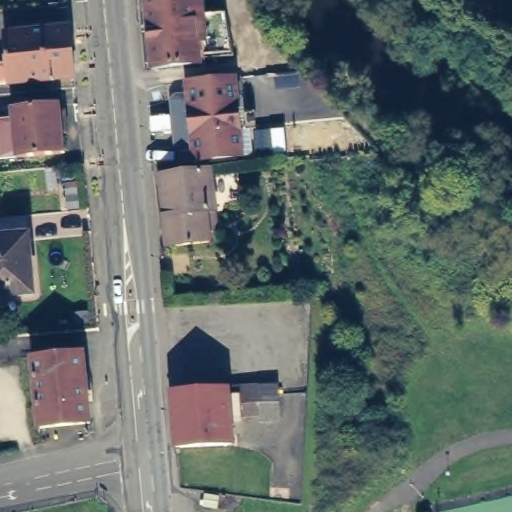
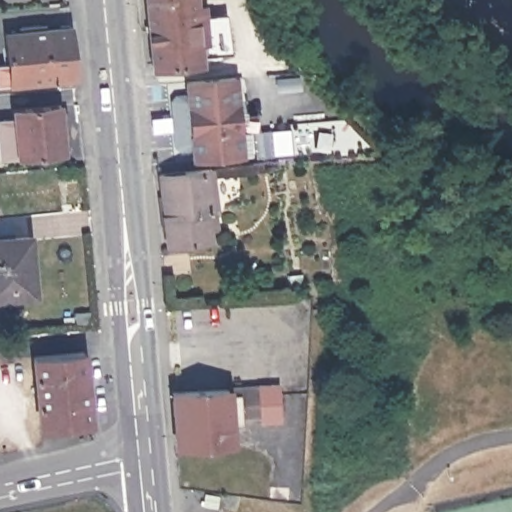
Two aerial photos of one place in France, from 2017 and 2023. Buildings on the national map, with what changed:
unchanged [(224,12),(231,51),(203,53),(203,56),(198,56),(198,58),(149,62),(143,0),(193,0),(194,13),(224,12)]
unchanged [(8,57),(5,27),(72,22),(77,72),(0,79),(0,58),(8,57)]
unchanged [(246,157),(195,162),(189,82),(238,78),(246,157)]
unchanged [(70,154),(5,159),(1,113),(66,108),(70,154)]
unchanged [(218,227),(209,228),(211,240),(170,244),(168,226),(166,226),(164,215),(166,215),(161,172),(213,167),(218,227)]
unchanged [(33,287),(0,290),(0,233),(29,231),(33,287)]
unchanged [(91,422),(41,426),(33,356),(84,353),(91,422)]
unchanged [(274,383),(276,414),(256,416),(256,410),(227,412),(228,440),(173,443),(169,387),(274,383)]
unchanged [(205,512),(206,500),(221,503),(220,512),(205,512)]

